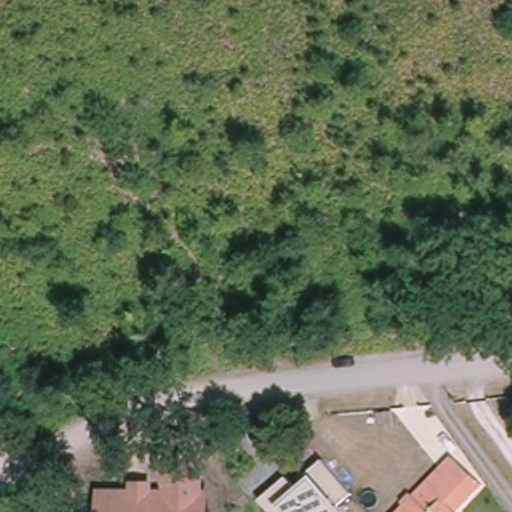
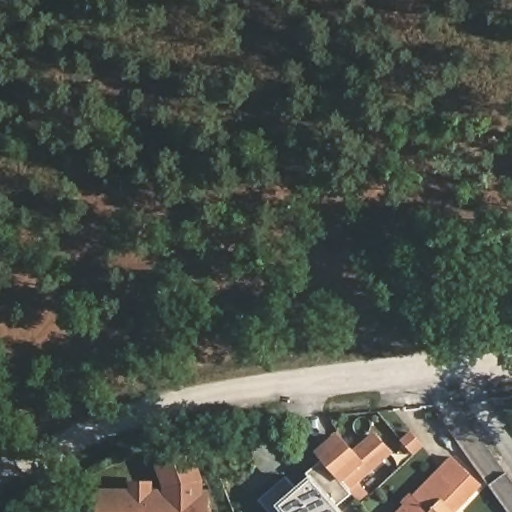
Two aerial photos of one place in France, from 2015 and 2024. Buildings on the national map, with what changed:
new [(323,459),(319,451),(340,431),(356,450),(376,431),(395,454),(351,490),(323,459)]
unchanged [(481,480),(455,508),(457,510),(455,512),(395,512),(453,453),(481,480)]
unchanged [(343,512),(342,512),(269,512),(260,499),(287,476),(299,485),(311,473),(323,459),(353,492),(340,507),(343,512)]
unchanged [(357,512),(362,508),(366,512),(357,512)]

